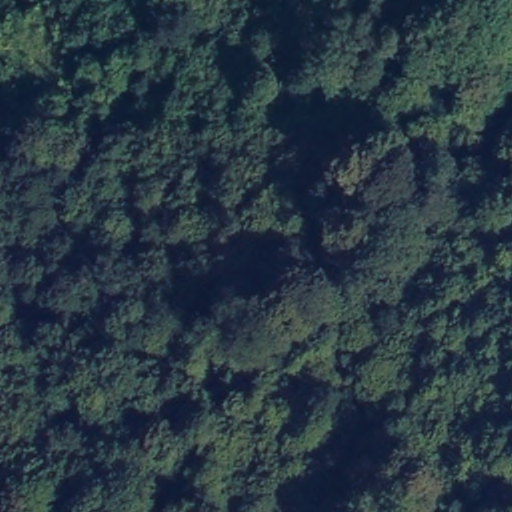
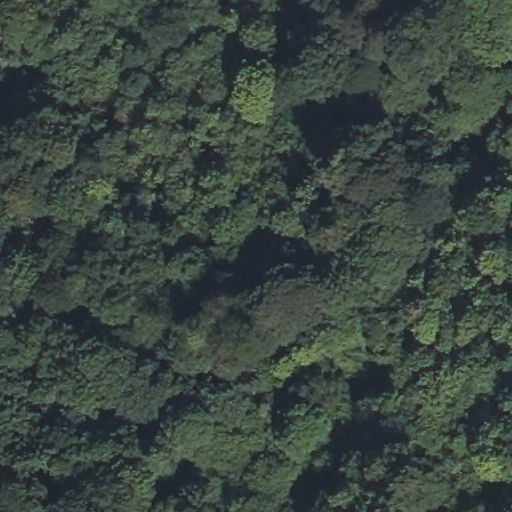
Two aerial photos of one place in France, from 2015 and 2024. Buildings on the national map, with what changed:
unchanged [(179,345),(202,367),(182,388),(157,364),(179,345)]

